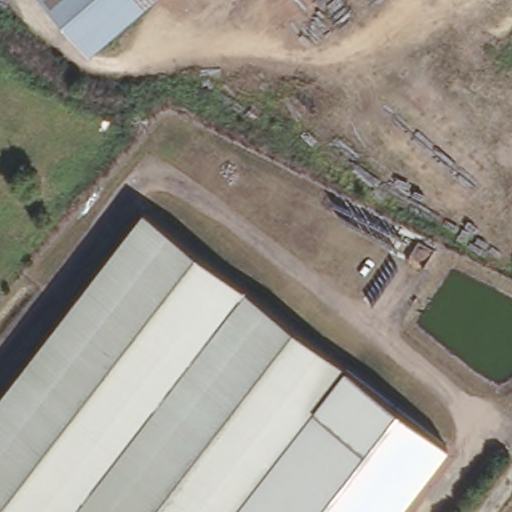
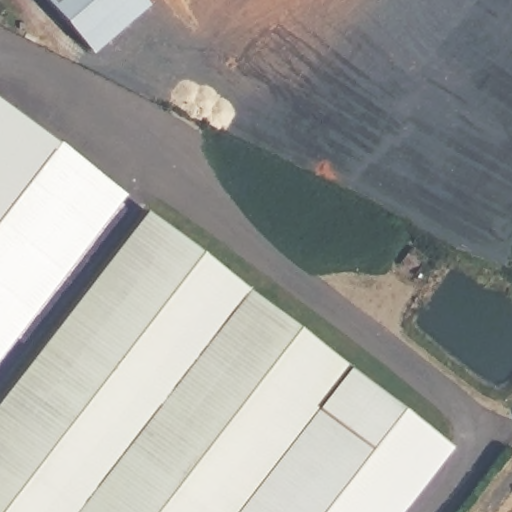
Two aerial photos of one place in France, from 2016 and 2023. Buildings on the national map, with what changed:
unchanged [(93,47),(52,0),(147,0),(93,47)]
new [(118,188),(0,338),(0,95),(118,188)]
unchanged [(399,512),(0,512),(0,397),(146,215),(447,451),(399,512)]

